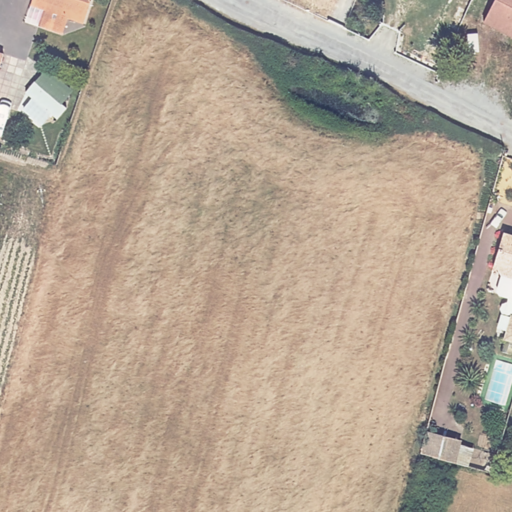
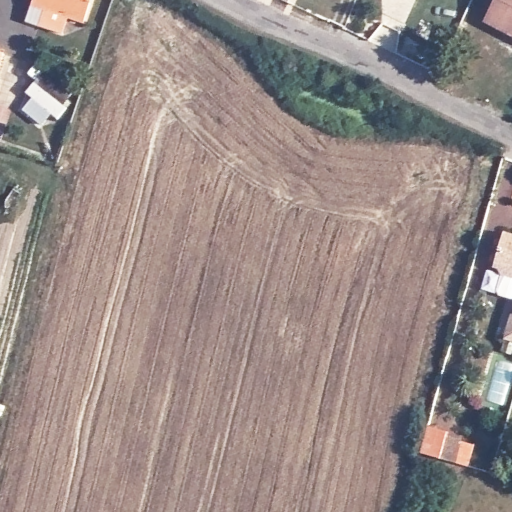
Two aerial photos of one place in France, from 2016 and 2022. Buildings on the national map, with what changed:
unchanged [(84,26),(69,21),(64,36),(41,28),(46,13),(32,8),(35,0),(93,0),(84,26)]
unchanged [(500,0),(512,0),(512,53),(481,36),(500,0)]
unchanged [(5,45),(0,78),(0,44),(5,45)]
unchanged [(59,116),(29,90),(38,79),(68,106),(59,116)]
unchanged [(501,288),(505,272),(502,266),(496,264),(507,230),(512,232),(512,295),(503,292),(501,288)]
unchanged [(512,322),(512,338),(507,336),(512,322)]
unchanged [(459,442),(453,462),(420,452),(425,432),(459,442)]

